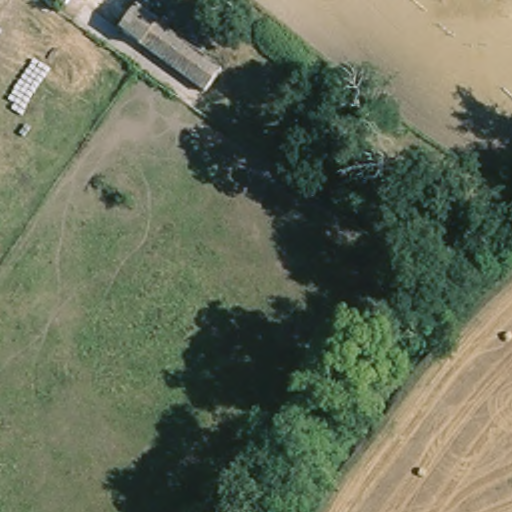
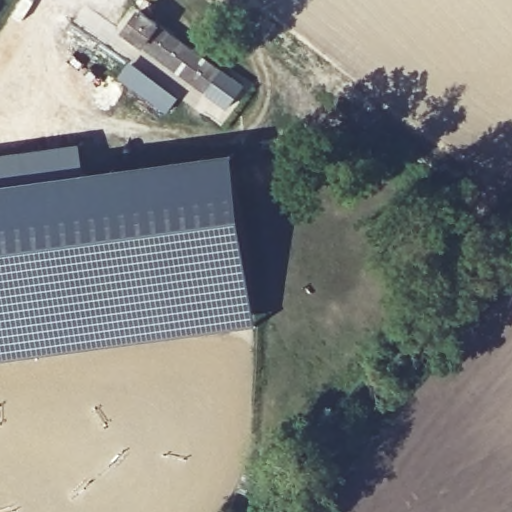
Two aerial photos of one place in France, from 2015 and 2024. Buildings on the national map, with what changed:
unchanged [(216,66),(200,90),(120,35),(137,11),(216,66)]
new [(129,60),(179,97),(165,116),(116,78),(129,60)]
new [(233,153),(257,325),(0,361),(0,186),(233,153)]

